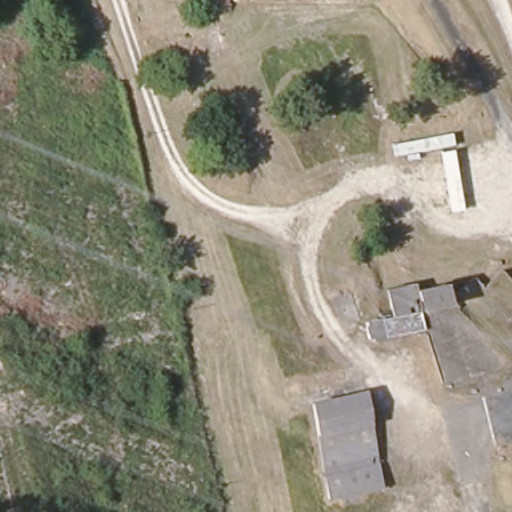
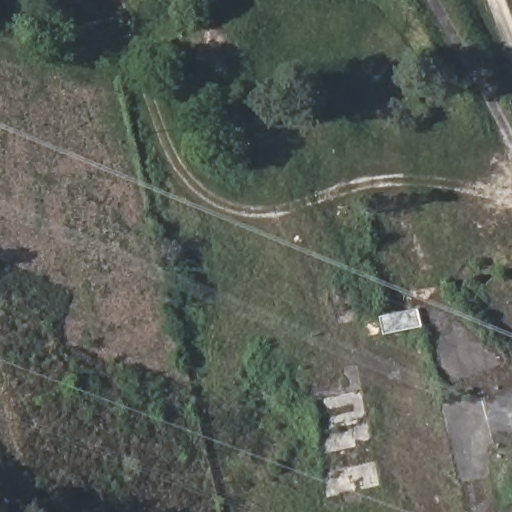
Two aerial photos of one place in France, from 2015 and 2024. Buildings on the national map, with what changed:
unchanged [(422,327),(383,334),(379,315),(390,312),(418,307),(422,327)]
demolished [(324,468),(308,396),(357,383),(374,457),(324,468)]
demolished [(331,497),(326,473),(374,462),(381,487),(331,497)]

